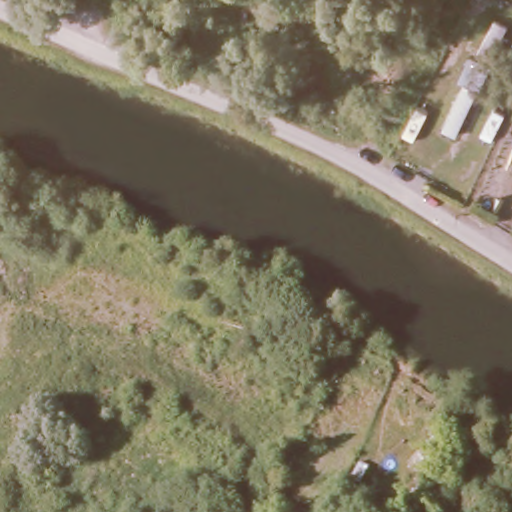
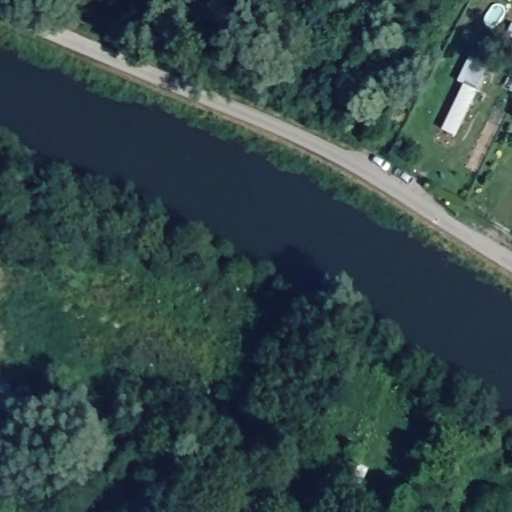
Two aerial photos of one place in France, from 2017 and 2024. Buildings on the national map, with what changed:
unchanged [(464,67),(482,75),(453,134),(434,125),(464,67)]

